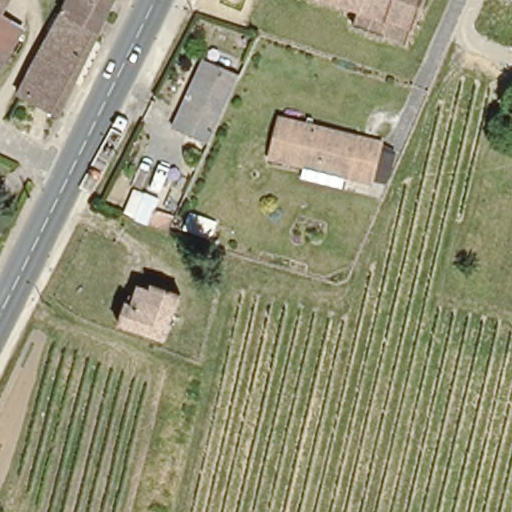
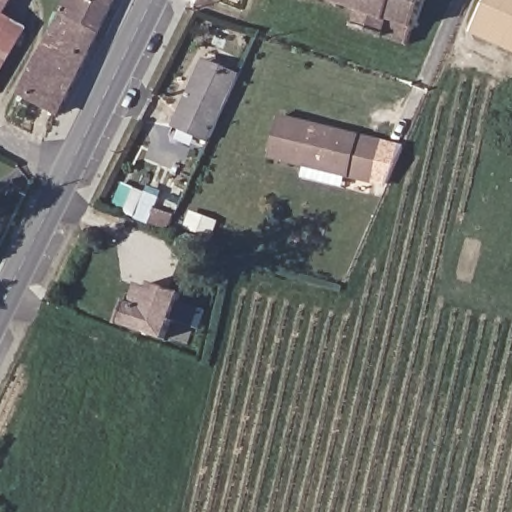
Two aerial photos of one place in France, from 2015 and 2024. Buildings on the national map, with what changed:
unchanged [(4,0),(0,8),(0,0),(4,0)]
unchanged [(27,80),(60,16),(67,0),(115,0),(97,36),(59,113),(20,95),(27,80)]
unchanged [(379,32),(352,23),(358,7),(339,0),(420,0),(406,42),(379,32)]
new [(472,31),(487,0),(512,0),(512,49),(472,31)]
unchanged [(17,25),(0,56),(0,15),(17,25)]
unchanged [(205,145),(171,130),(197,75),(204,60),(207,62),(237,75),(205,145)]
unchanged [(307,167),(273,159),(283,120),(361,140),(384,146),(382,152),(375,182),(351,177),(351,179),(307,167)]
unchanged [(170,216),(177,201),(187,204),(190,199),(197,201),(195,207),(187,222),(170,216)]
unchanged [(119,323),(127,302),(130,292),(139,296),(142,284),(150,287),(152,283),(180,293),(164,339),(119,323)]

